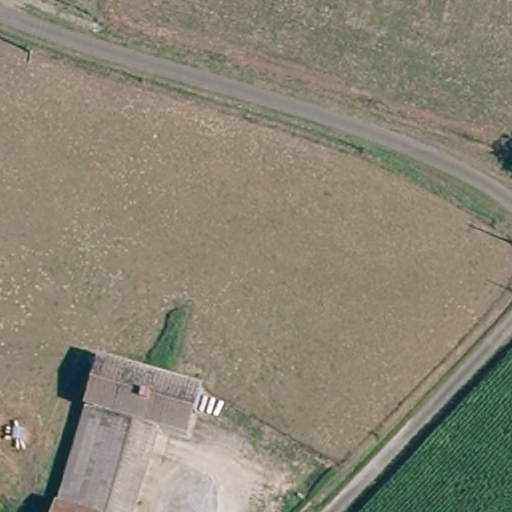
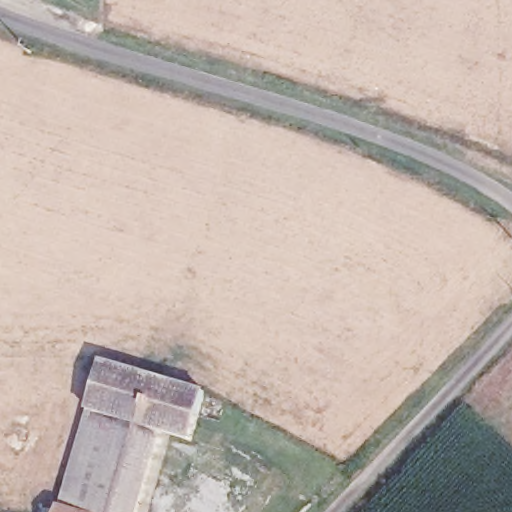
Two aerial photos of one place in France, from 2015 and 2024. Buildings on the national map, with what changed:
unchanged [(204,392),(190,440),(160,431),(137,512),(75,512),(60,507),(102,362),(204,392)]
unchanged [(75,512),(58,512),(60,507),(75,512)]

